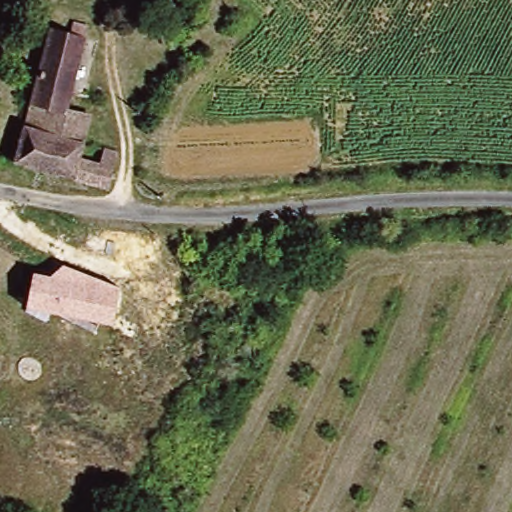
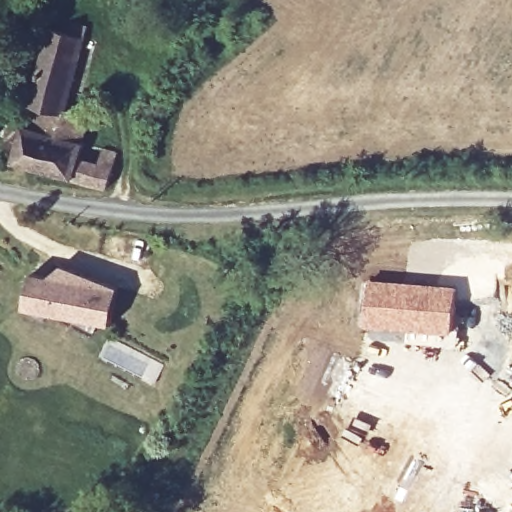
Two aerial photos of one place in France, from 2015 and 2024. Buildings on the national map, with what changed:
unchanged [(45,48),(47,37),(81,45),(61,118),(26,111),(45,48)]
unchanged [(26,111),(61,118),(85,123),(81,144),(20,133),(26,111)]
unchanged [(20,133),(81,144),(78,160),(106,166),(109,151),(121,154),(113,190),(101,187),(79,183),(44,178),(10,172),(20,133)]
unchanged [(32,274),(52,277),(63,266),(119,287),(114,324),(27,306),(32,274)]
new [(372,282),(457,288),(456,329),(369,323),(372,282)]

